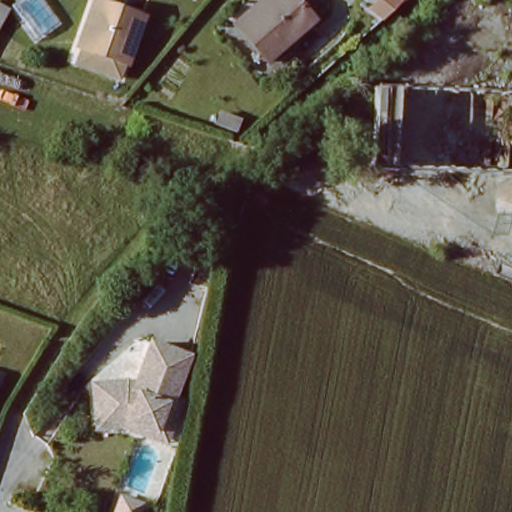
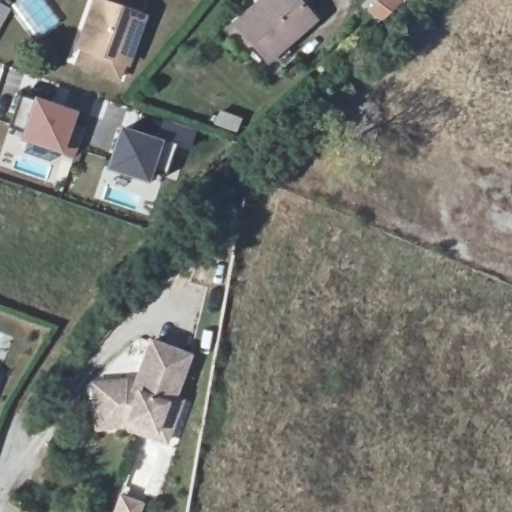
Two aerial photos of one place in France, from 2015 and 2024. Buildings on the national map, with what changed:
unchanged [(238,25),(263,0),(295,0),(309,15),(268,56),(238,25)]
new [(373,0),(411,0),(384,25),(366,8),(373,0)]
unchanged [(139,19),(122,65),(75,47),(88,2),(139,19)]
new [(11,9),(0,29),(0,3),(11,9)]
new [(77,111),(90,114),(75,159),(62,156),(20,142),(22,132),(10,128),(20,99),(32,103),(34,97),(77,111)]
new [(120,126),(157,139),(164,117),(198,129),(190,151),(176,146),(165,176),(153,172),(148,185),(107,171),(120,126)]
unchanged [(95,435),(92,387),(137,381),(151,341),(193,353),(184,397),(190,403),(172,446),(124,431),(95,435)]
new [(146,512),(122,512),(124,505),(146,512)]

